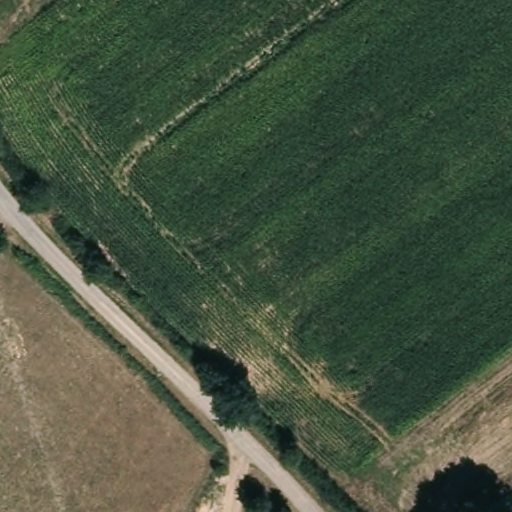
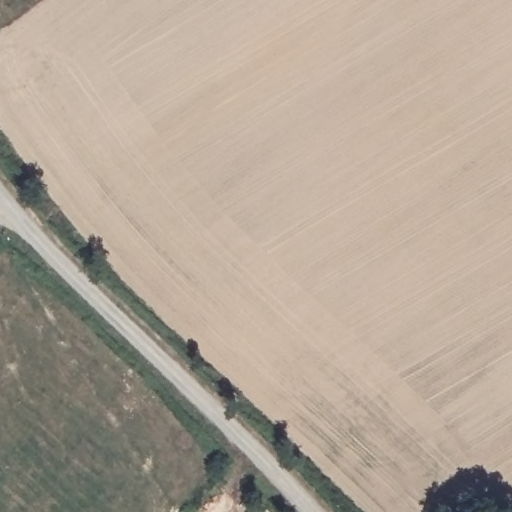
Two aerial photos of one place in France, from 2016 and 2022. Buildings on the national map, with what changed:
[]

